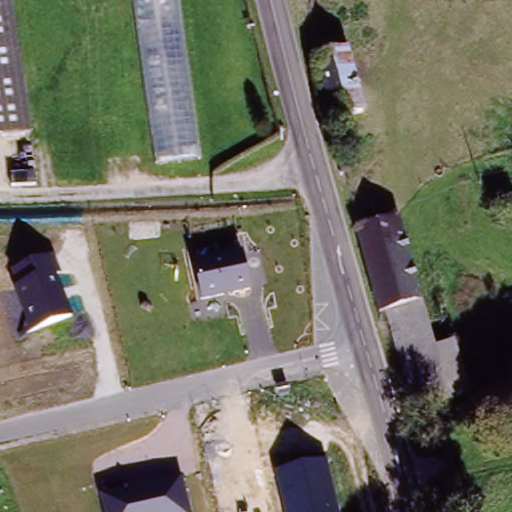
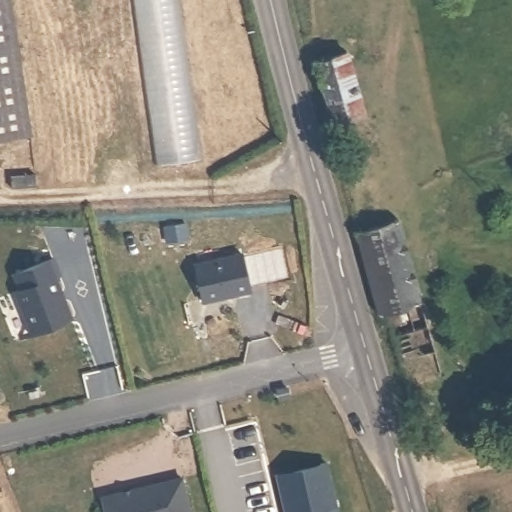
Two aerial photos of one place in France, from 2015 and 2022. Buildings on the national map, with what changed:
unchanged [(0,142),(0,0),(14,0),(33,138),(0,142)]
unchanged [(150,165),(129,0),(172,0),(195,158),(150,165)]
unchanged [(331,128),(317,74),(347,66),(362,120),(331,128)]
unchanged [(396,215),(412,297),(380,305),(358,226),(396,215)]
unchanged [(242,253),(251,293),(203,303),(196,260),(242,253)]
unchanged [(55,257),(63,277),(57,279),(72,316),(30,332),(11,274),(55,257)]
unchanged [(421,300),(437,348),(450,344),(474,412),(418,427),(385,310),(421,300)]
unchanged [(327,460),(339,512),(288,512),(280,470),(327,460)]
unchanged [(182,478),(189,512),(107,512),(102,493),(182,478)]

